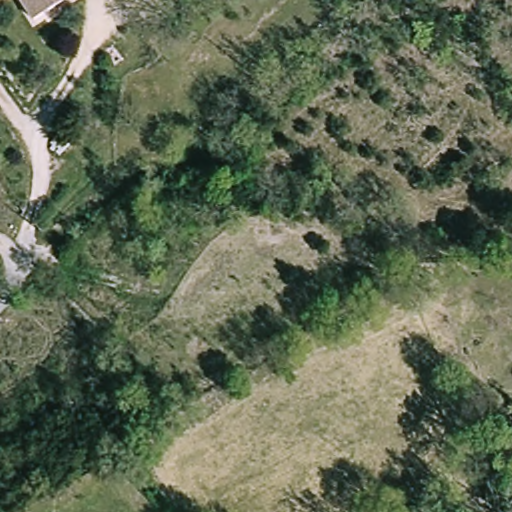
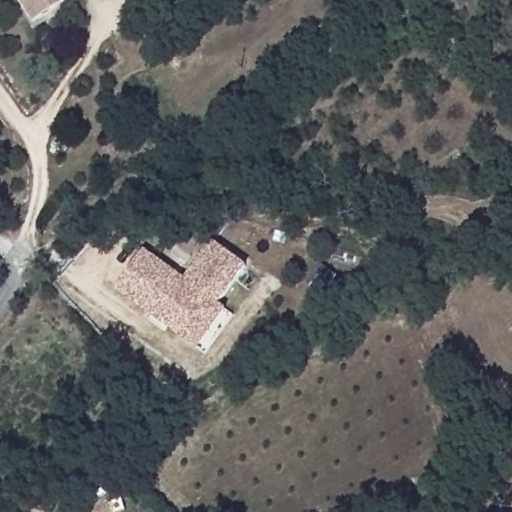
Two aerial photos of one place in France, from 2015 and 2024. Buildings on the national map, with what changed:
unchanged [(0,3),(0,0),(5,0),(0,3)]
unchanged [(37,23),(23,0),(76,0),(37,23)]
new [(152,255),(188,282),(216,247),(250,273),(223,310),(239,322),(210,360),(123,293),(152,255)]

